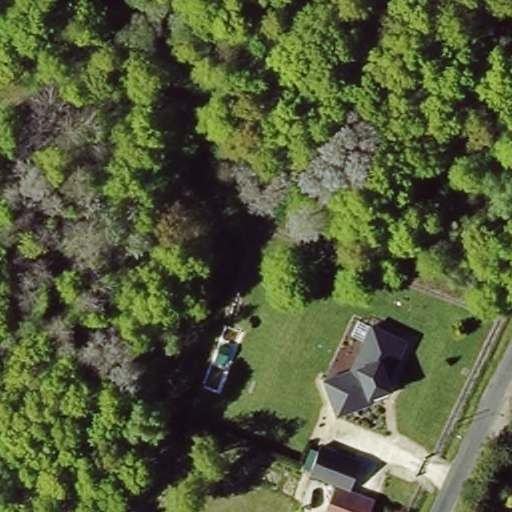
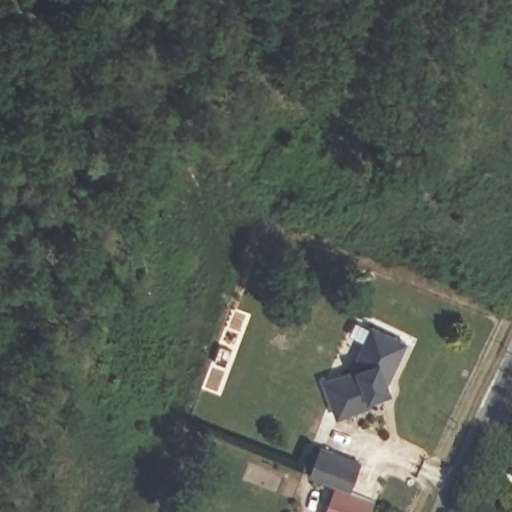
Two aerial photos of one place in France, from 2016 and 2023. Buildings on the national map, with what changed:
unchanged [(392,391),(370,399),(372,405),(337,418),(322,380),(349,370),(370,324),(407,342),(388,381),(392,391)]
unchanged [(320,446),(361,462),(349,491),(308,476),(320,446)]
unchanged [(377,504),(375,512),(334,512),(342,489),(377,504)]

